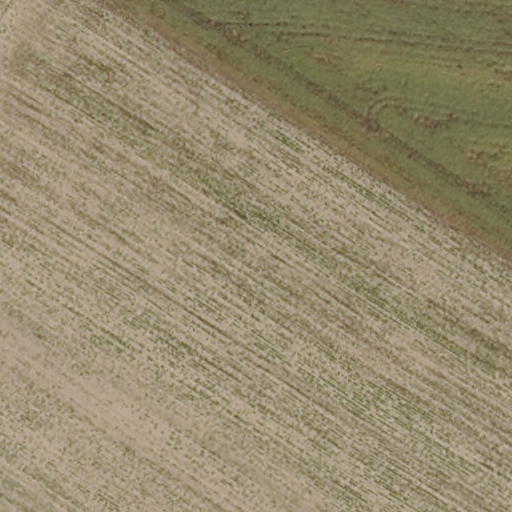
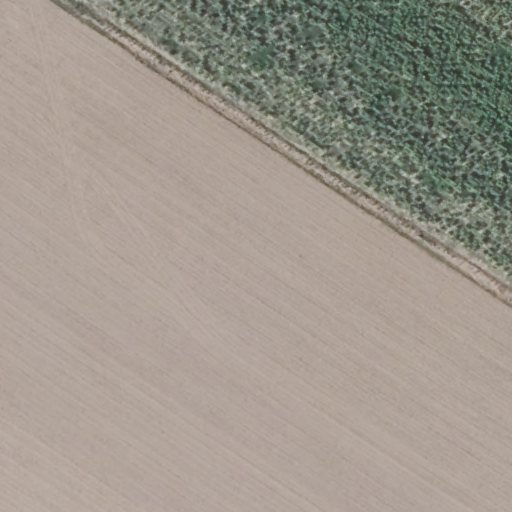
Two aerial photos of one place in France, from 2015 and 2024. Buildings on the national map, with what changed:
[]

